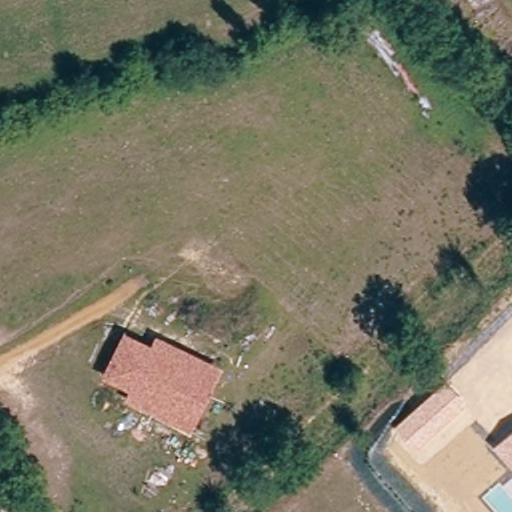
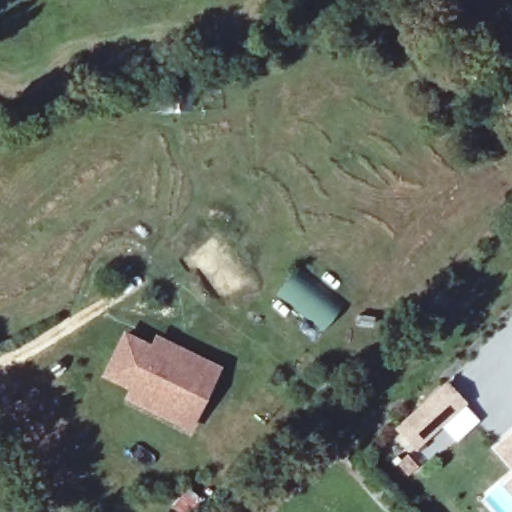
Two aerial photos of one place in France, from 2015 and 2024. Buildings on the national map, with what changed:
new [(274,293),(295,267),(342,304),(322,331),(274,293)]
unchanged [(151,344),(155,335),(222,368),(192,430),(124,400),(127,390),(100,377),(123,330),(151,344)]
unchanged [(445,382),(466,404),(416,451),(395,428),(445,382)]
unchanged [(512,431),(512,469),(492,447),(512,431)]

